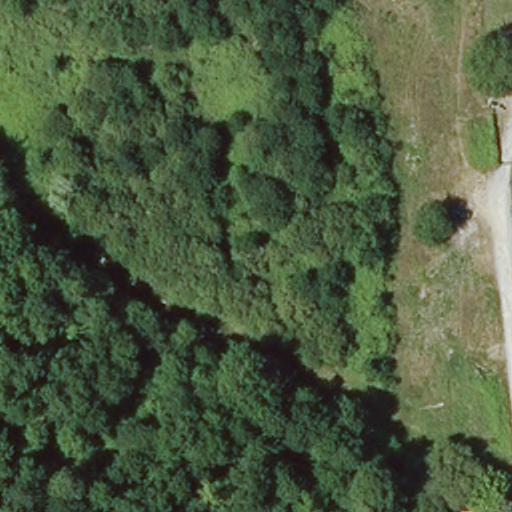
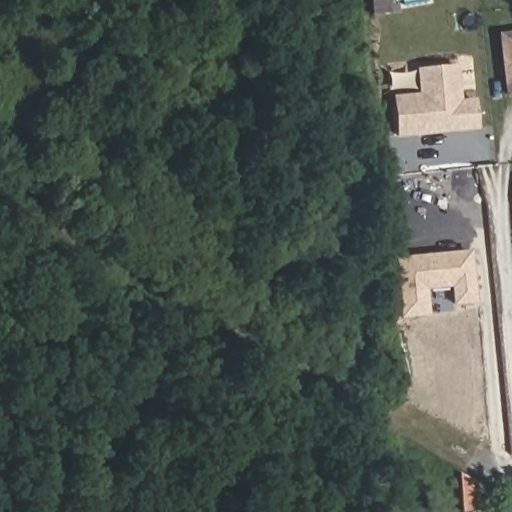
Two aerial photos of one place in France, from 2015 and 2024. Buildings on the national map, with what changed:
unchanged [(512,38),(512,85),(507,39),(512,38)]
new [(395,135),(391,97),(417,95),(414,69),(452,65),(455,100),(470,99),(473,126),(441,130),(423,132),(395,135)]
new [(392,258),(470,251),(475,302),(451,305),(449,290),(425,292),(427,316),(397,321),(392,258)]

